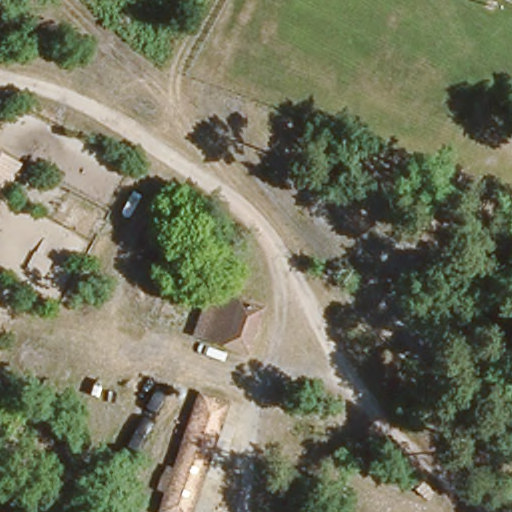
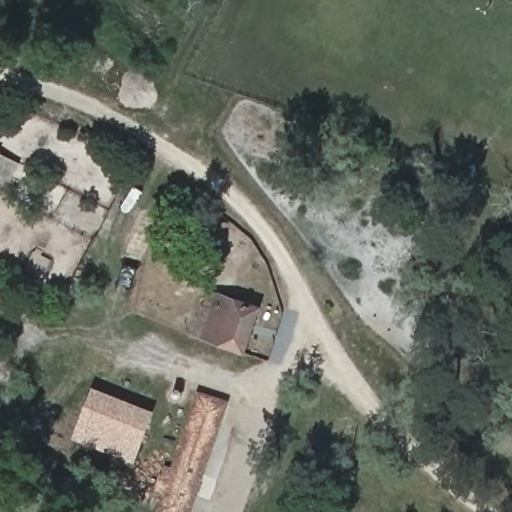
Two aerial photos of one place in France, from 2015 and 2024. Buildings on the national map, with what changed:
unchanged [(258,305),(240,355),(202,340),(221,291),(258,305)]
new [(157,410),(137,462),(75,438),(95,387),(157,410)]
unchanged [(176,512),(158,505),(163,490),(154,485),(159,473),(169,478),(202,388),(229,399),(187,512),(176,512)]

